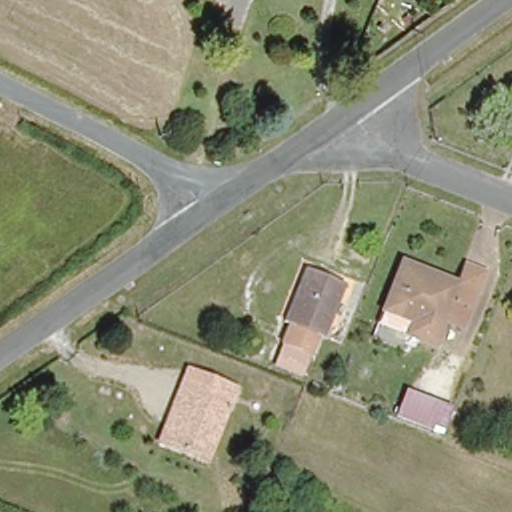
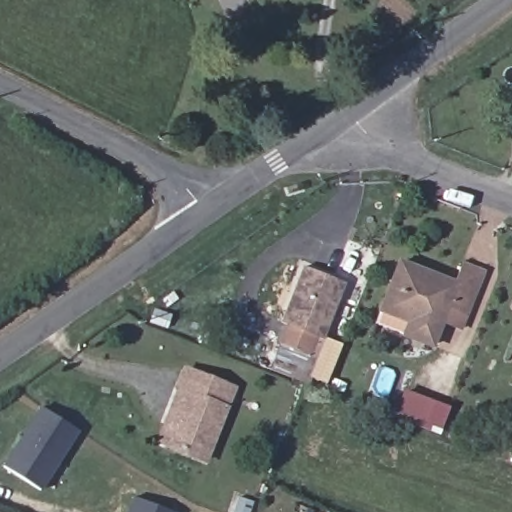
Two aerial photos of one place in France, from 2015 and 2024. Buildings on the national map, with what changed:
unchanged [(457,281),(464,263),(486,272),(470,312),(448,303),(433,344),(377,323),(401,259),(457,281)]
unchanged [(305,351),(278,340),(286,322),(281,320),(303,265),(342,281),(321,334),(312,331),(305,351)]
unchanged [(512,326),(512,329),(511,328),(512,326)]
unchanged [(177,388),(186,367),(234,385),(206,458),(165,443),(157,441),(177,388)]
new [(392,417),(402,390),(450,407),(439,434),(392,417)]
new [(42,407),(80,431),(40,493),(2,468),(42,407)]
new [(132,497),(172,512),(125,512),(132,497)]

